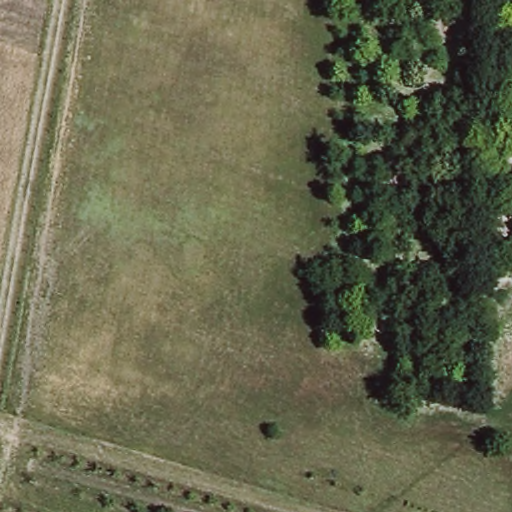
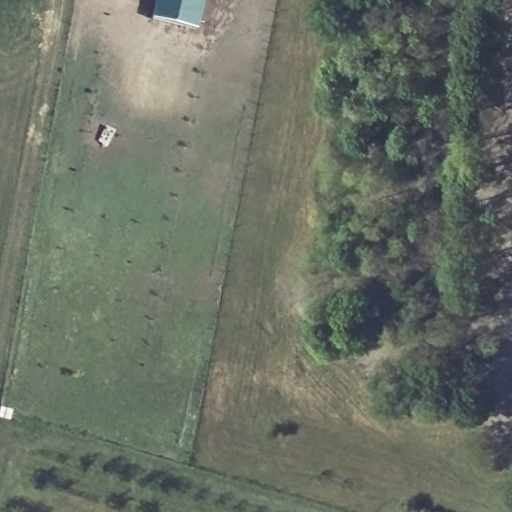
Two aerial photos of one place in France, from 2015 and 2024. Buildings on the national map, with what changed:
new [(152,19),(156,0),(203,0),(196,30),(152,19)]

